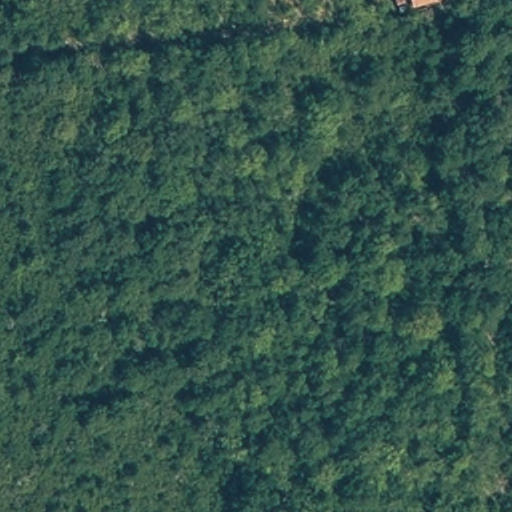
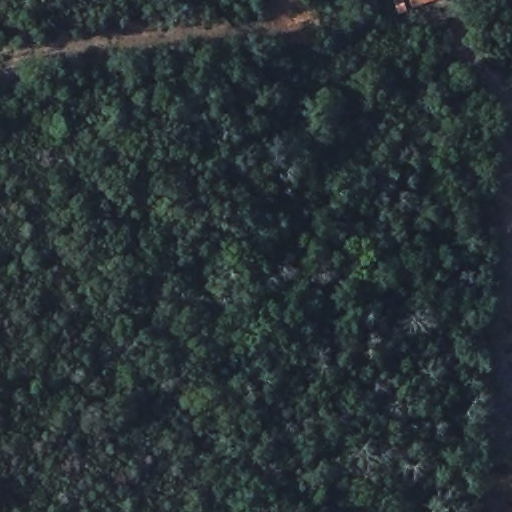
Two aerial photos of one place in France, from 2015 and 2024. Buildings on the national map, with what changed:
unchanged [(407,0),(441,0),(412,13),(407,0)]

